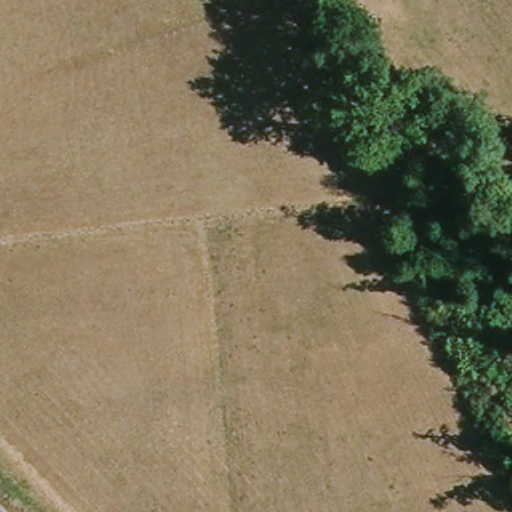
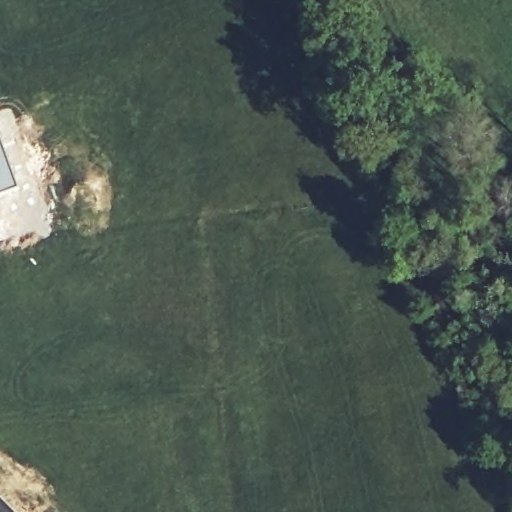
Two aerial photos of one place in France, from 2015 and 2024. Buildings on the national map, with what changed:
new [(17,188),(0,194),(0,141),(17,188)]

